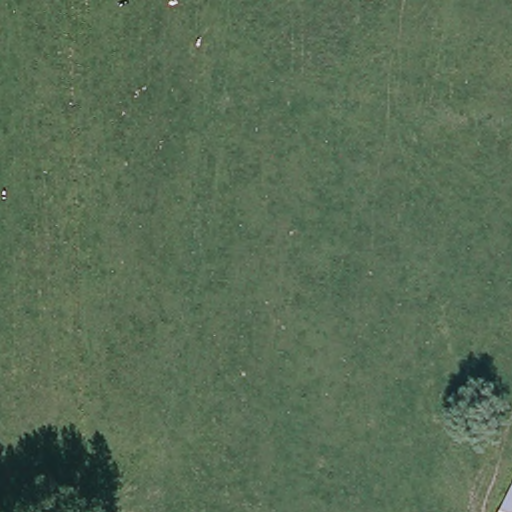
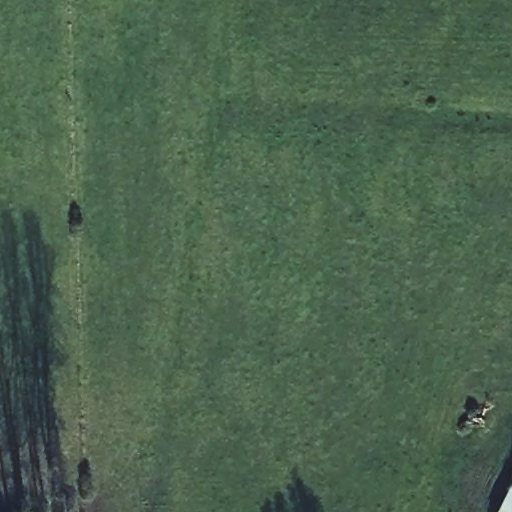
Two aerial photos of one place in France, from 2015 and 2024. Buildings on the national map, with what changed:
unchanged [(499,512),(512,488),(512,512),(499,512)]

